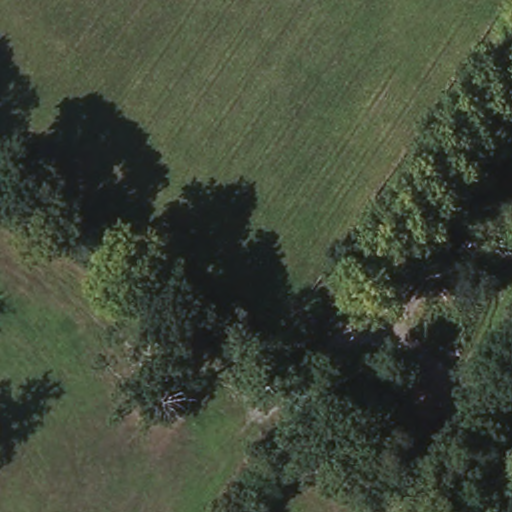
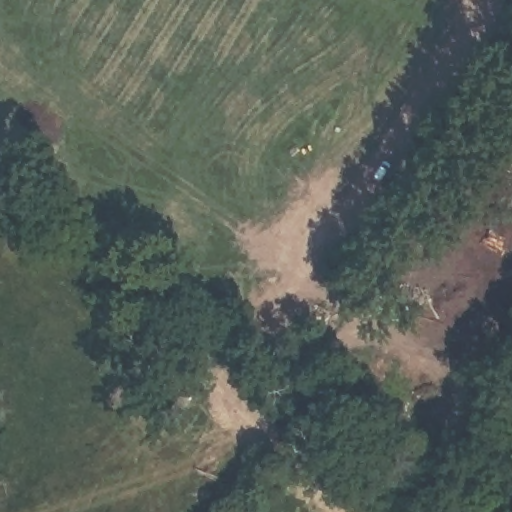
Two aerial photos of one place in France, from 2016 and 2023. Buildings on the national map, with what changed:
unchanged [(512,6),(503,0),(512,0),(512,6)]

